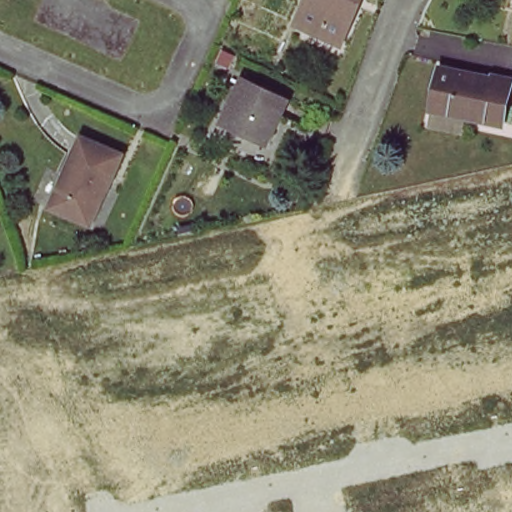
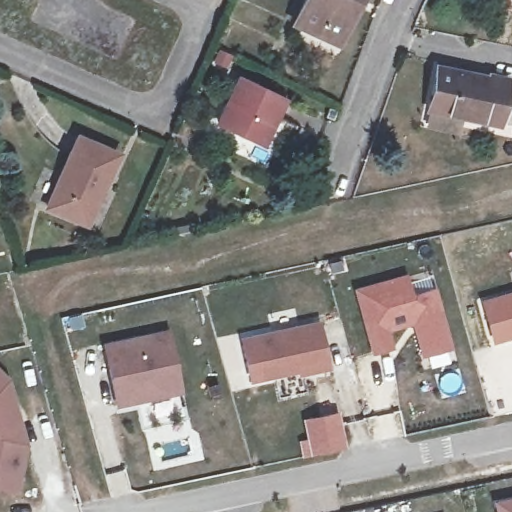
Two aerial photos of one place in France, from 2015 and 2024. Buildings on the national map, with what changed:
unchanged [(336,44),(298,25),(310,0),(356,0),(336,44)]
unchanged [(510,83),(496,131),(425,108),(439,66),(486,80),(489,76),(510,83)]
unchanged [(281,96),(258,143),(217,122),(239,77),(281,96)]
unchanged [(113,159),(82,225),(45,206),(78,142),(113,159)]
new [(406,281),(411,301),(433,295),(449,351),(424,357),(414,324),(386,332),(390,350),(374,354),(358,295),(406,281)]
new [(512,339),(491,345),(478,301),(512,290),(512,339)]
new [(317,327),(326,371),(309,374),(308,370),(249,382),(241,343),(317,327)]
new [(170,332),(180,380),(118,393),(107,344),(170,332)]
new [(6,384),(0,390),(0,378),(6,384)]
new [(12,408),(15,422),(11,443),(23,446),(12,492),(0,489),(0,396),(12,408)]
new [(305,438),(301,418),(339,411),(346,449),(301,458),(297,440),(305,438)]
new [(512,512),(502,512),(503,494),(512,495),(512,512)]

